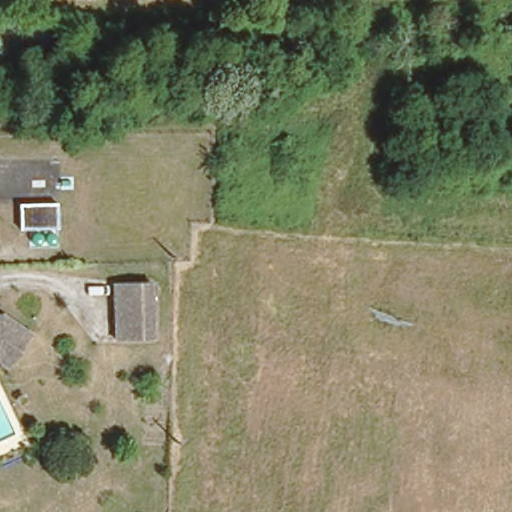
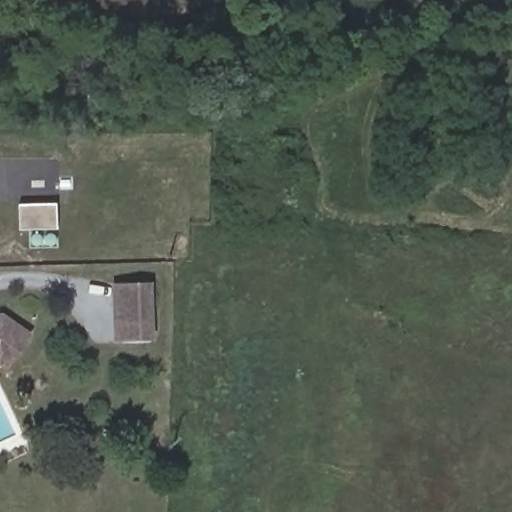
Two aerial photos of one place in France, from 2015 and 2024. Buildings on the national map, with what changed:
unchanged [(389,1),(384,13),(373,8),(377,0),(386,0),(389,1)]
unchanged [(55,196),(56,227),(15,229),(15,197),(55,196)]
unchanged [(114,337),(114,323),(113,283),(143,282),(144,322),(145,337),(114,337)]
unchanged [(10,361),(0,353),(0,313),(3,311),(30,330),(10,361)]

